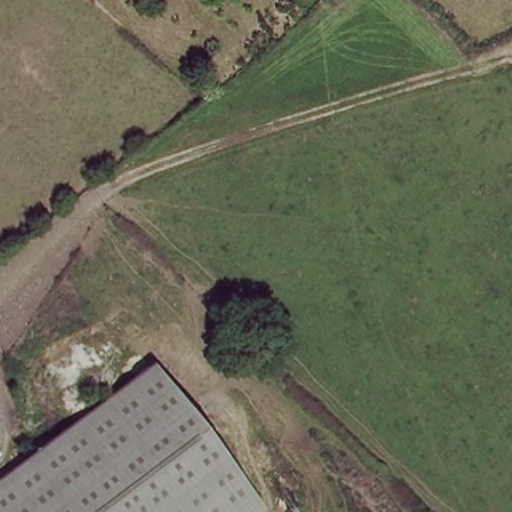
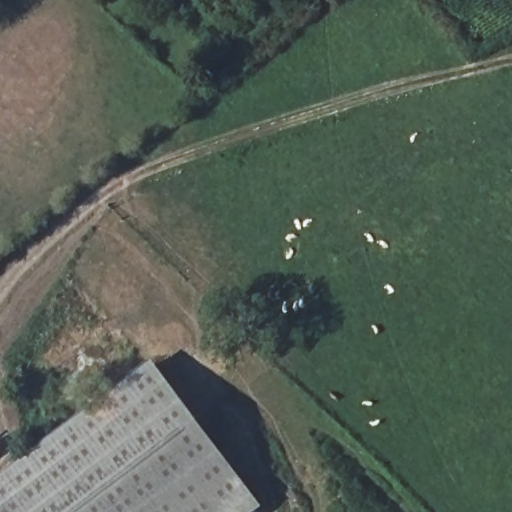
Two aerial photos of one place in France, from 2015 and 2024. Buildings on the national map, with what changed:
unchanged [(159,367),(272,510),(268,512),(0,512),(0,486),(159,367)]
unchanged [(1,455),(0,456),(0,453),(1,455)]

